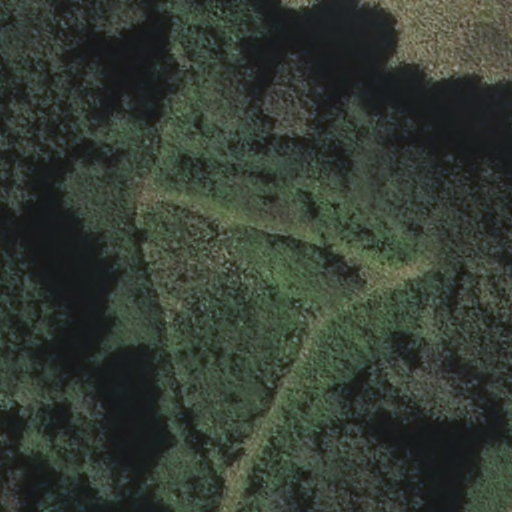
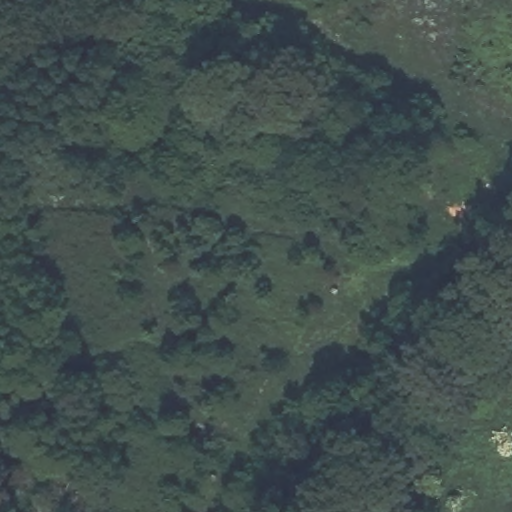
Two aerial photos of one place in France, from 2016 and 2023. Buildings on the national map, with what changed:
[]

